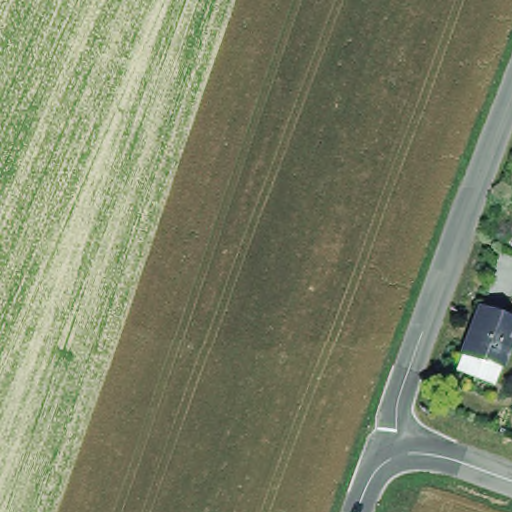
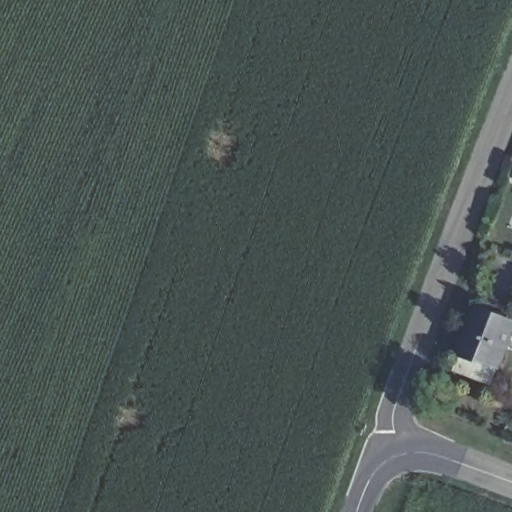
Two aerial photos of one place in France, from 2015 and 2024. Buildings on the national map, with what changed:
unchanged [(458,362),(475,316),(512,331),(512,335),(498,372),(496,376),(477,369),(458,362)]

